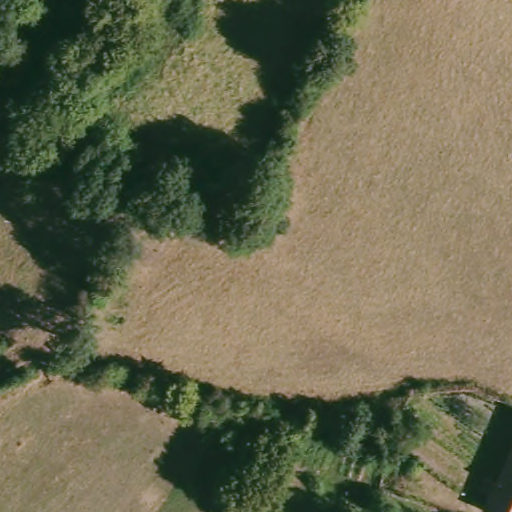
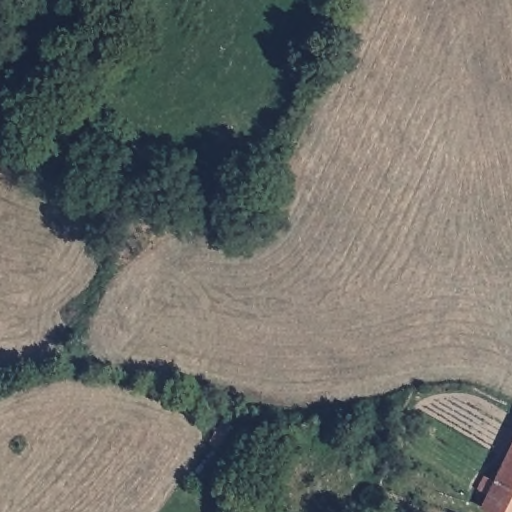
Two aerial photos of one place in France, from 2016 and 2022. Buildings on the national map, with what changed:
unchanged [(495,497),(483,490),(490,478),(502,482),(512,462),(512,512),(492,512),(488,511),(495,497)]

